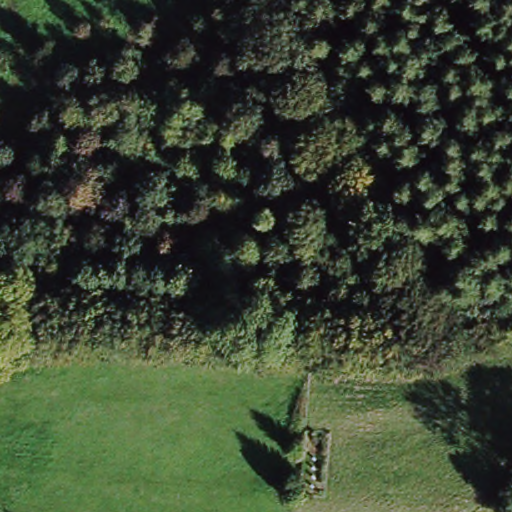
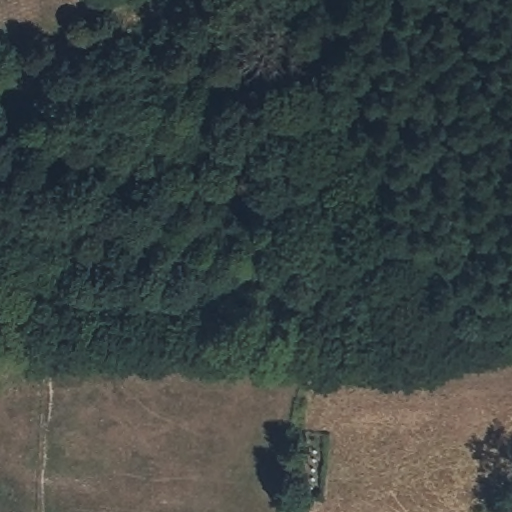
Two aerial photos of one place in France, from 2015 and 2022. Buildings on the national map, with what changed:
[]

